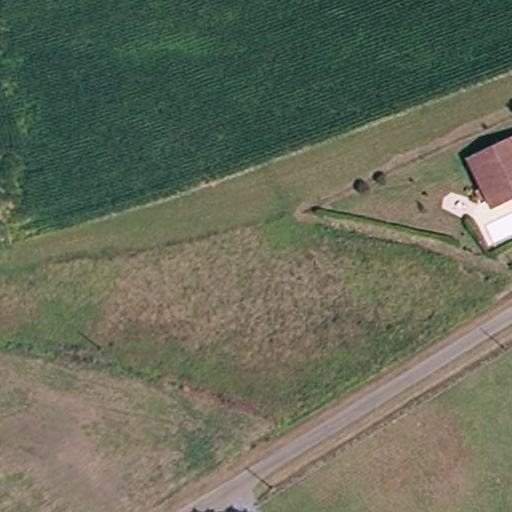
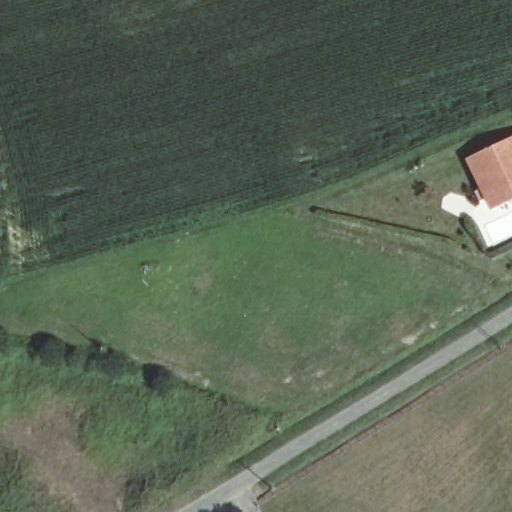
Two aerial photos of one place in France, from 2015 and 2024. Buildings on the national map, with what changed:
unchanged [(471,168),(512,145),(512,203),(496,212),(471,168)]

